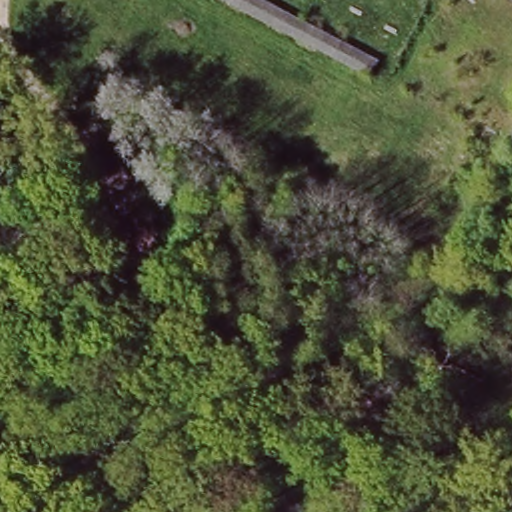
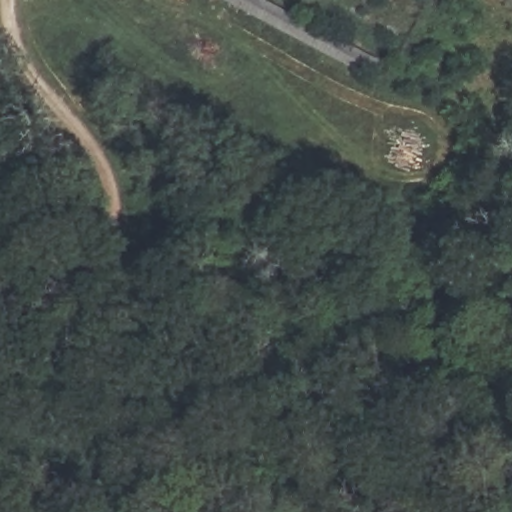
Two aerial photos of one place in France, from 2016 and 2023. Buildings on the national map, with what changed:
unchanged [(372,82),(214,0),(270,0),(383,59),(372,82)]

